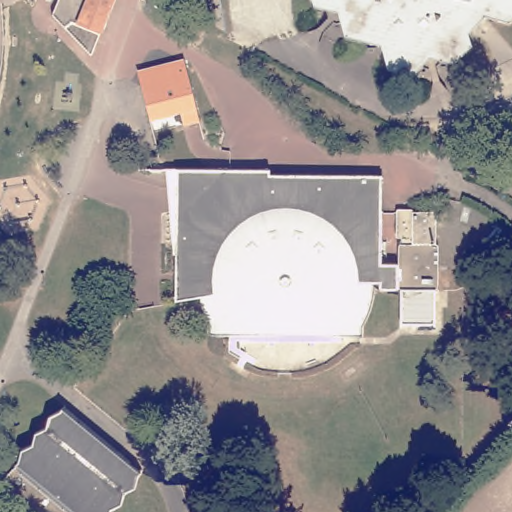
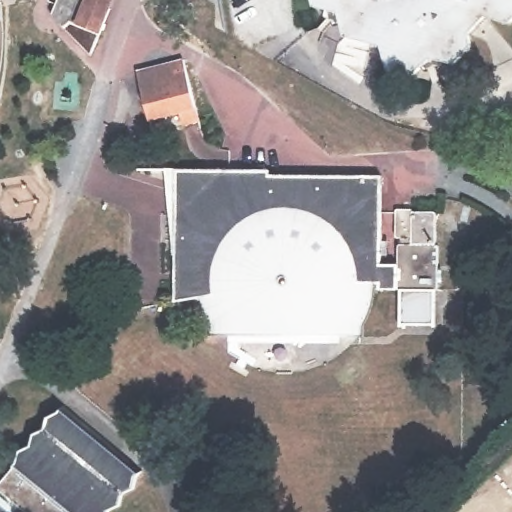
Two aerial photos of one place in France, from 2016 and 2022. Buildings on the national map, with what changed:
unchanged [(66,0),(123,0),(99,59),(58,18),(66,0)]
unchanged [(350,41),(343,17),(319,10),(316,0),(512,0),(512,22),(494,17),(472,39),(476,52),(459,69),(435,63),(418,81),(393,74),(386,51),(350,41)]
unchanged [(192,65),(205,120),(188,124),(185,111),(147,121),(137,80),(192,65)]
unchanged [(178,177),(276,177),(277,181),(383,182),(382,269),(393,269),(392,251),(395,251),(395,245),(392,245),(390,245),(388,243),(387,241),(387,239),(388,214),(404,213),(407,218),(424,217),(427,220),(427,249),(431,252),(432,288),(429,294),(381,296),(381,288),(373,289),(372,300),(370,312),(366,323),(361,334),(361,346),(276,346),(203,347),(203,337),(199,328),(195,318),(192,308),(177,310),(178,177)]
unchanged [(24,455),(36,450),(38,439),(50,434),(53,421),(63,417),(70,410),(146,473),(142,477),(139,489),(127,495),(123,506),(114,512),(27,512),(2,491),(23,466),(24,455)]

